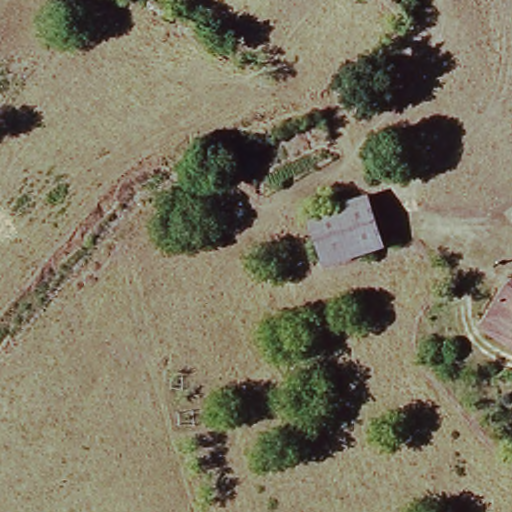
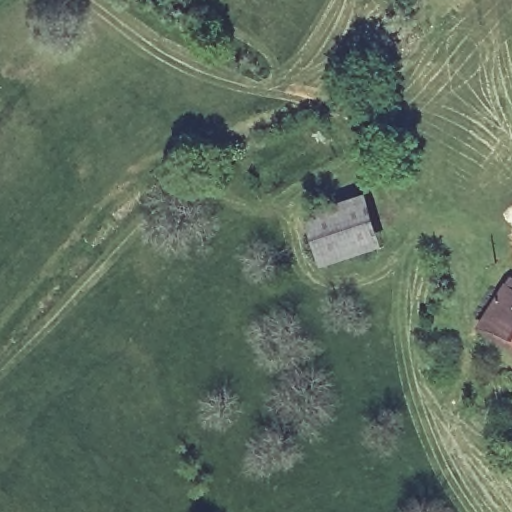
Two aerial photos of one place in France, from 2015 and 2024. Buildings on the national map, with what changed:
unchanged [(310,213),(367,198),(378,246),(323,262),(310,213)]
unchanged [(496,344),(477,332),(502,293),(512,299),(512,318),(496,344)]
unchanged [(512,318),(512,353),(496,344),(512,318)]

